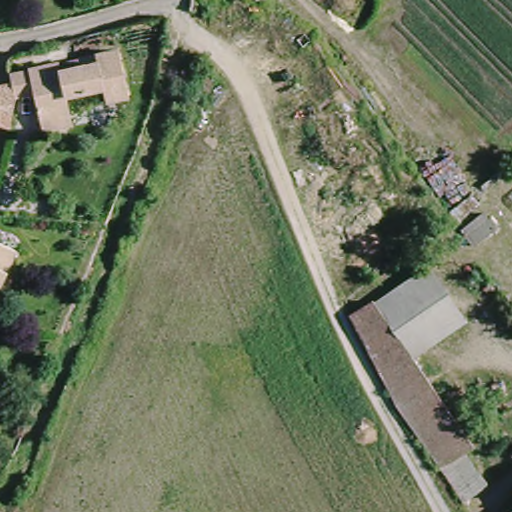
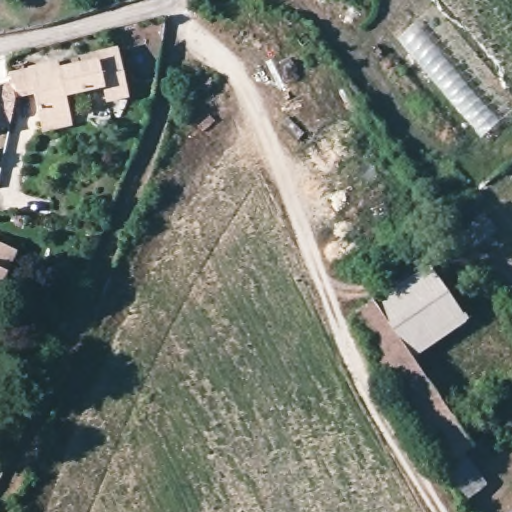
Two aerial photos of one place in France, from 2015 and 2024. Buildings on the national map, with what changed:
new [(481,137),(397,38),(414,24),(498,122),(481,137)]
unchanged [(47,135),(40,110),(23,115),(22,110),(20,105),(13,77),(15,77),(30,73),(32,73),(60,65),(62,72),(99,63),(98,55),(119,50),(131,94),(109,100),(105,86),(68,96),(70,102),(77,128),(47,135)]
unchanged [(15,81),(18,95),(9,130),(0,127),(0,84),(15,81)]
unchanged [(17,249),(0,284),(0,241),(17,249)]
unchanged [(391,297),(433,269),(469,324),(428,351),(419,357),(383,302),(390,297),(391,297)]
unchanged [(401,399),(358,318),(383,302),(419,357),(480,451),(474,457),(448,473),(401,399)]
unchanged [(474,457),(495,491),(470,506),(448,473),(474,457)]
unchanged [(512,508),(512,512),(505,512),(512,508)]

